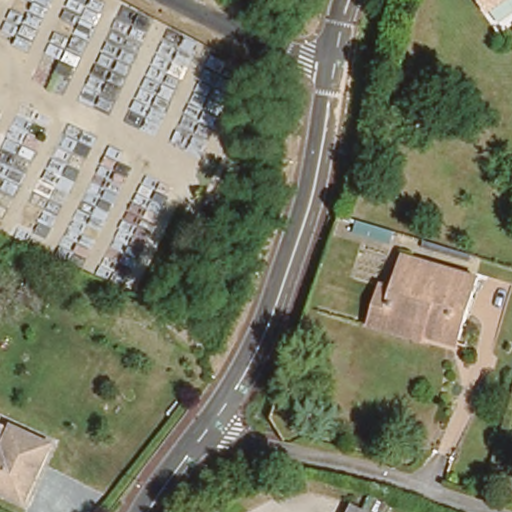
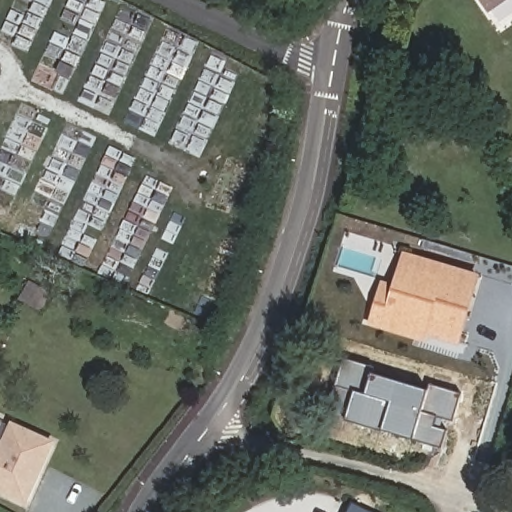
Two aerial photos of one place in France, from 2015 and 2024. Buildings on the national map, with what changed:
unchanged [(507,4),(490,16),(478,0),(511,0),(507,4)]
unchanged [(397,237),(393,250),(355,238),(359,226),(397,237)]
unchanged [(370,327),(384,283),(397,287),(407,255),(417,258),(481,278),(460,345),(416,332),(413,341),(370,327)]
unchanged [(51,288),(41,311),(15,301),(26,277),(51,288)]
new [(326,419),(344,360),(374,369),(372,376),(429,392),(431,386),(461,395),(452,427),(437,422),(435,428),(448,432),(443,450),(326,419)]
unchanged [(21,507),(0,498),(0,450),(2,451),(12,432),(49,448),(21,507)]
unchanged [(389,507),(387,512),(358,512),(364,497),(389,507)]
unchanged [(358,512),(344,512),(346,507),(358,512)]

